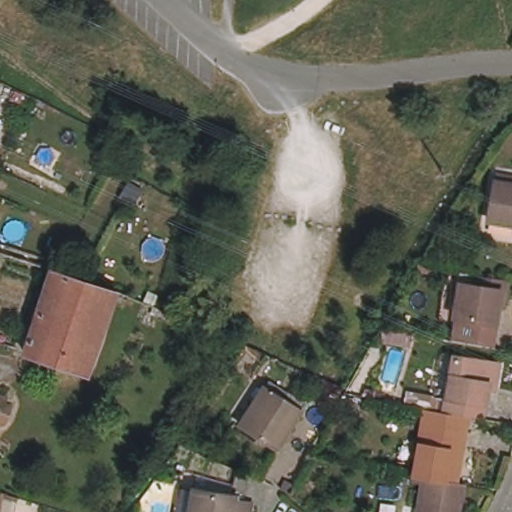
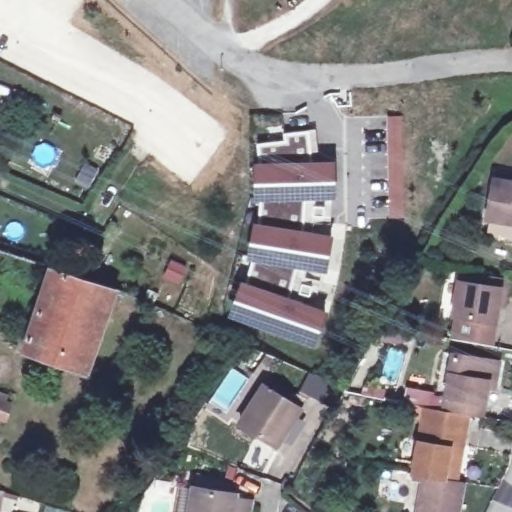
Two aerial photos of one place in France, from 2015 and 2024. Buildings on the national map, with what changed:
new [(286,141),(285,134),(317,129),(319,163),(337,163),(338,200),(312,199),(312,233),(335,237),(327,275),(308,272),(297,300),(331,313),(315,350),(229,318),(243,282),(247,283),(253,262),(249,262),(255,225),(260,225),(262,202),(256,202),(254,165),(262,164),(259,145),(286,141)]
unchanged [(495,223),(502,187),(512,189),(512,226),(495,223)]
unchanged [(22,350),(55,271),(57,272),(119,299),(85,372),(22,350)]
unchanged [(489,350),(460,345),(464,325),(452,323),(458,290),(476,293),(478,279),(509,285),(506,300),(503,314),(496,313),(492,331),(489,350)]
unchanged [(465,416),(442,412),(451,358),(487,365),(496,366),(491,394),(482,393),(479,419),(465,416)]
unchanged [(243,428),(266,391),(302,415),(279,452),(243,428)]
unchanged [(12,420),(6,419),(0,436),(0,399),(16,404),(12,420)]
unchanged [(465,416),(454,483),(460,484),(454,512),(414,512),(422,476),(412,474),(425,409),(442,412),(465,416)]
unchanged [(235,474),(250,480),(242,502),(232,501),(232,505),(246,507),(245,512),(187,512),(190,495),(226,499),(235,474)]

